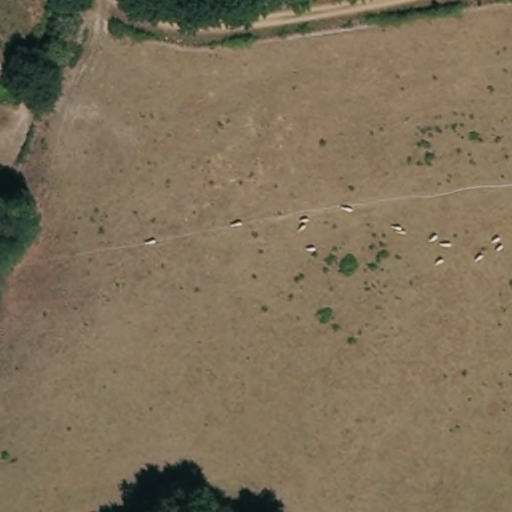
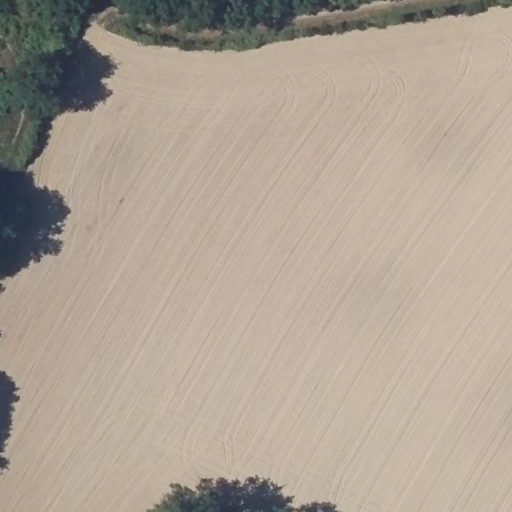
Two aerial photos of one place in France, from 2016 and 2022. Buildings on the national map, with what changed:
[]

